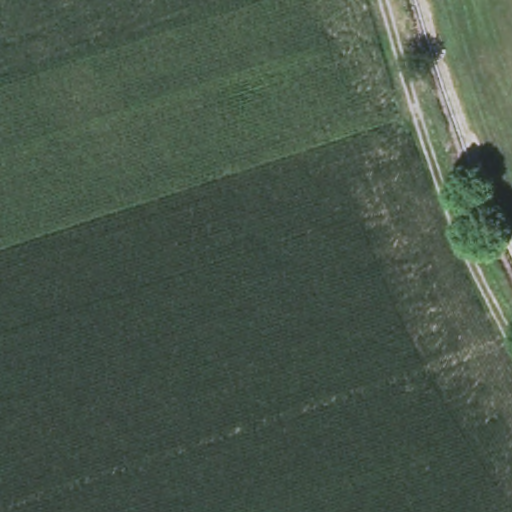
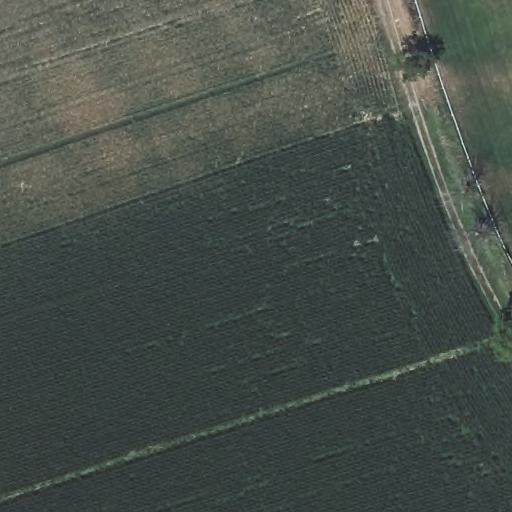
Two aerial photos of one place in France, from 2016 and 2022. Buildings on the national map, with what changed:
[]

